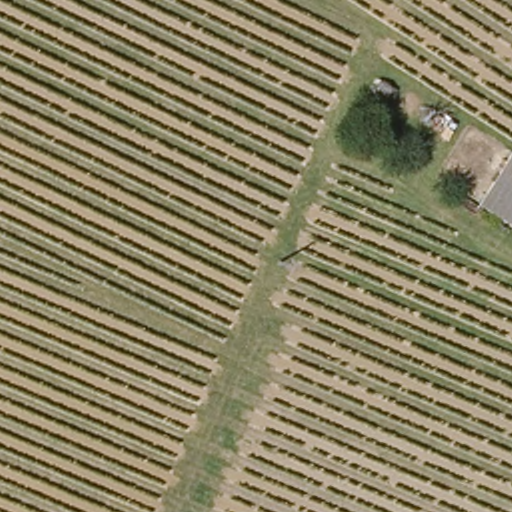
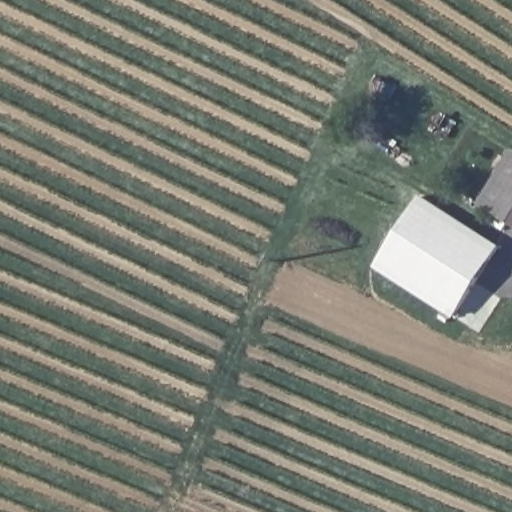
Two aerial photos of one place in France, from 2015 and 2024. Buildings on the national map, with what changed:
unchanged [(510,147),(512,148),(512,225),(477,204),(510,147)]
new [(453,319),(372,268),(418,194),(500,247),(453,319)]

